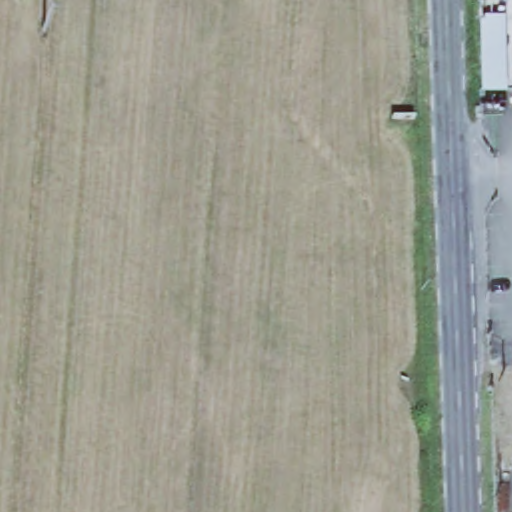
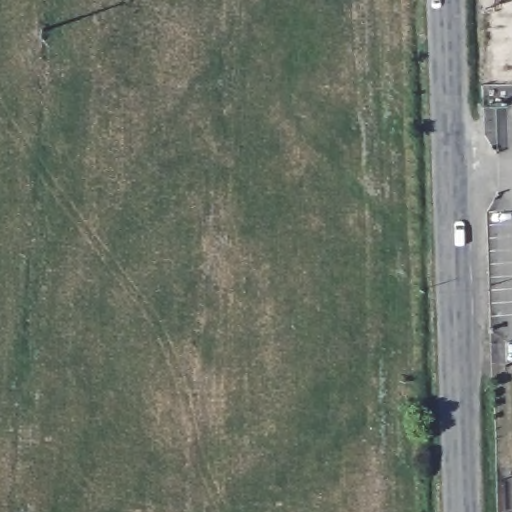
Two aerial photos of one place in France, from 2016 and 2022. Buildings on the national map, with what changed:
[]

